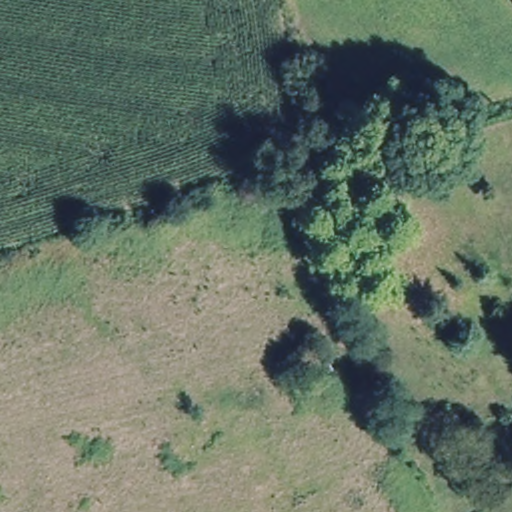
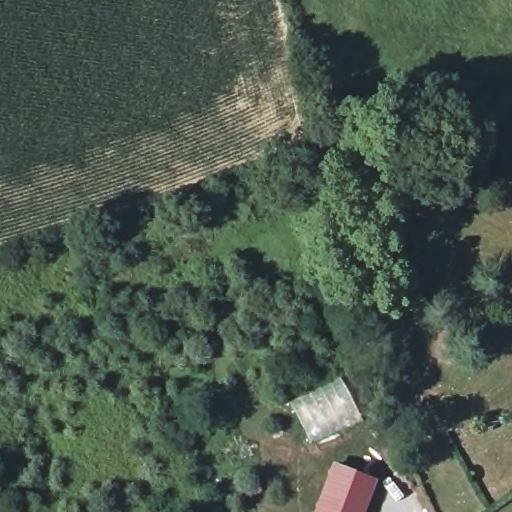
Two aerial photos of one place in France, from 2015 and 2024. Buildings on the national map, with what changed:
unchanged [(312,381),(298,359),(320,343),(332,365),(312,381)]
new [(339,376),(363,420),(309,445),(287,402),(339,376)]
new [(331,460),(378,477),(364,512),(311,512),(331,460)]

